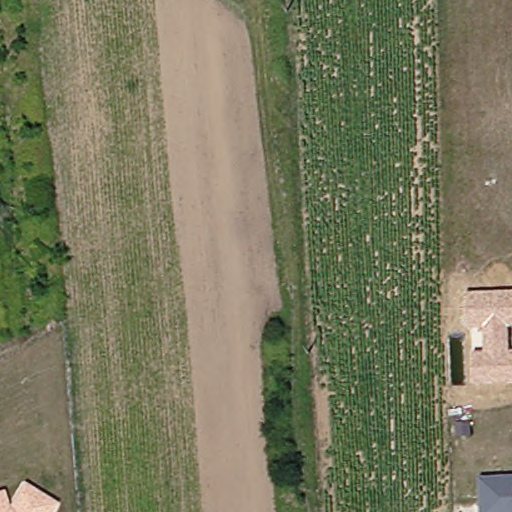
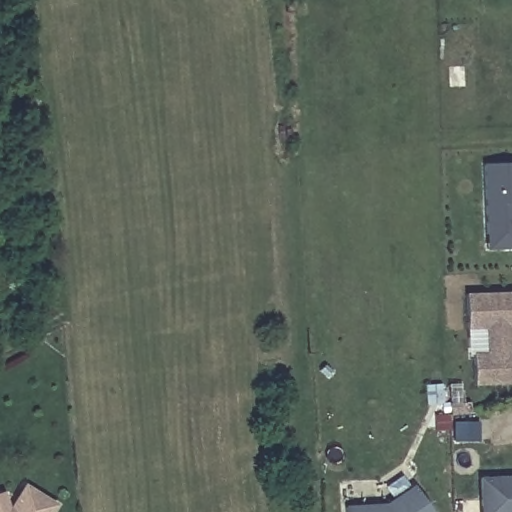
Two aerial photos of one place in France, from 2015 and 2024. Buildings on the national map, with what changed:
new [(485,165),(512,164),(512,249),(486,250),(485,165)]
unchanged [(486,353),(484,328),(468,330),(466,294),(512,292),(512,328),(510,329),(510,353),(512,352),(512,384),(473,385),(472,353),(486,353)]
unchanged [(475,480),(512,477),(512,512),(476,512),(476,508),(475,480)]
new [(350,512),(350,504),(388,501),(418,481),(439,512),(350,512)]
unchanged [(3,491),(9,508),(24,484),(58,505),(54,512),(0,512),(0,492),(3,491)]

